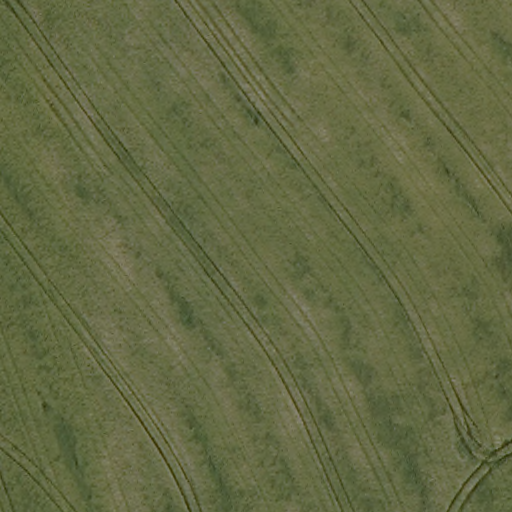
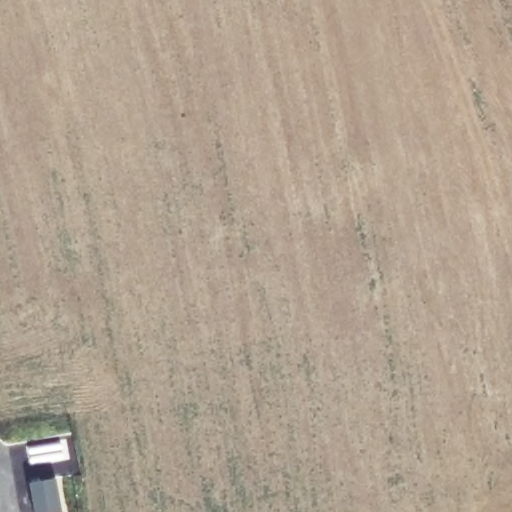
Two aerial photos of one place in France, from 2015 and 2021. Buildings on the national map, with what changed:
new [(61,512),(34,512),(29,484),(55,479),(61,512)]

